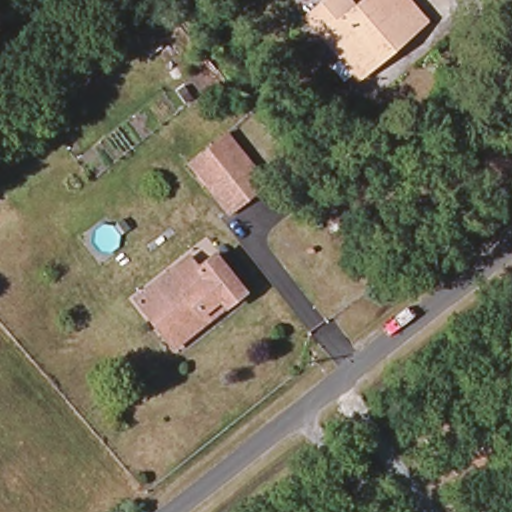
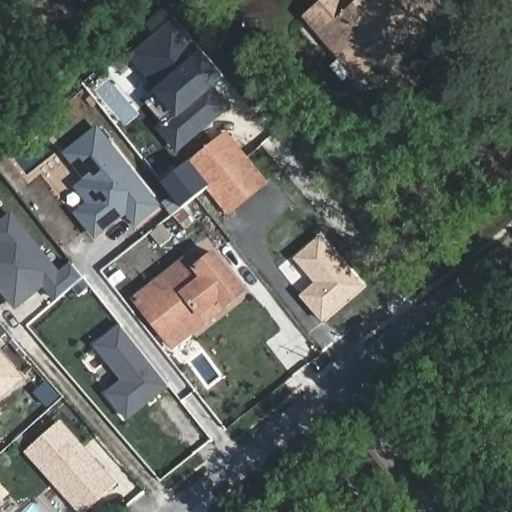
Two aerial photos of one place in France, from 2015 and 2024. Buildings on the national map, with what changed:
unchanged [(340,0),(352,14),(370,0),(398,0),(420,28),(392,51),(386,46),(355,73),(346,61),(340,67),(305,24),(333,0),(340,0)]
new [(227,78),(214,89),(228,105),(178,153),(155,128),(170,114),(155,96),(160,93),(129,57),(175,16),(227,78)]
new [(95,239),(74,214),(87,204),(73,187),(84,179),(62,153),(97,125),(160,207),(136,226),(127,214),(95,239)]
unchanged [(235,167),(206,190),(187,165),(224,135),(262,185),(254,192),(235,167)]
new [(187,165),(205,189),(182,208),(161,183),(190,159),(191,161),(187,165)]
unchanged [(225,215),(206,190),(235,167),(254,192),(225,215)]
new [(71,262),(82,277),(55,300),(44,288),(17,309),(0,289),(0,221),(11,213),(60,271),(71,262)]
new [(293,258),(320,235),(365,287),(322,321),(300,295),(315,283),(293,258)]
unchanged [(150,287),(185,259),(194,270),(211,255),(240,294),(223,308),(216,300),(199,315),(204,322),(170,349),(147,321),(132,301),(150,287)]
new [(125,422),(105,394),(120,380),(92,345),(122,323),(171,386),(125,422)]
new [(25,378),(0,400),(0,350),(25,378)]
new [(25,452),(60,420),(118,484),(87,512),(78,512),(25,452)]
unchanged [(471,462),(459,445),(488,424),(500,441),(471,462)]
new [(11,494),(0,505),(0,481),(11,494)]

